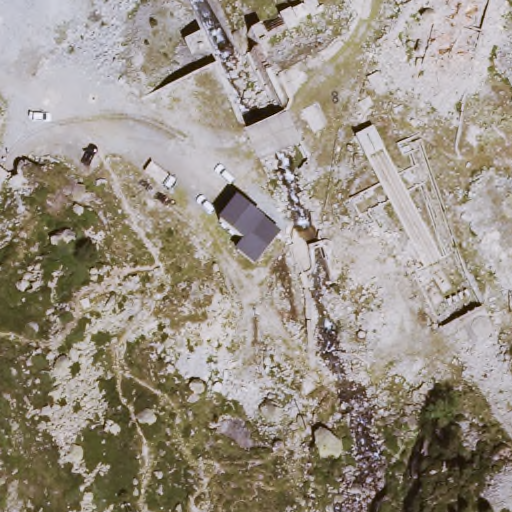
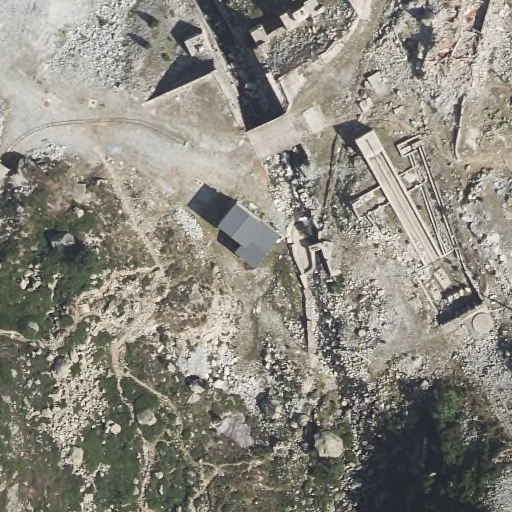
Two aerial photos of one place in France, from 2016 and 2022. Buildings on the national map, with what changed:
unchanged [(262,217),(281,231),(256,266),(235,251),(244,240),(219,221),(236,197),(262,217)]

